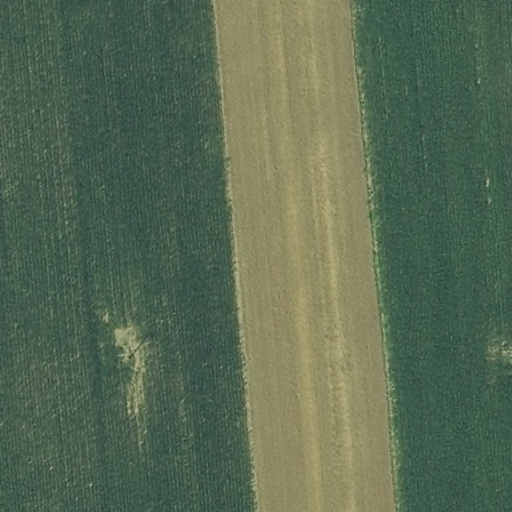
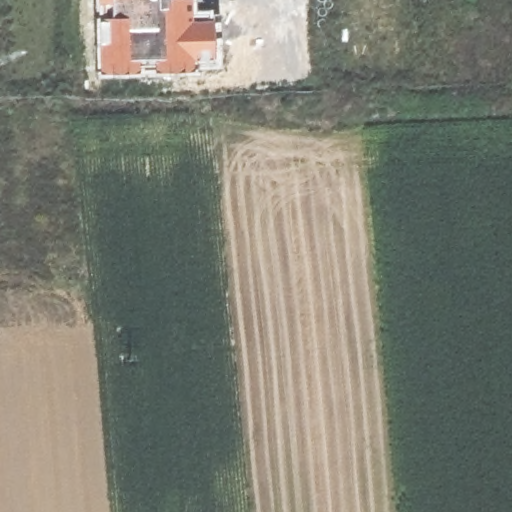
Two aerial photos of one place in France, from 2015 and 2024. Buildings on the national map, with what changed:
new [(196,9),(213,9),(219,69),(174,75),(94,79),(92,17),(92,0),(197,0),(196,9)]

